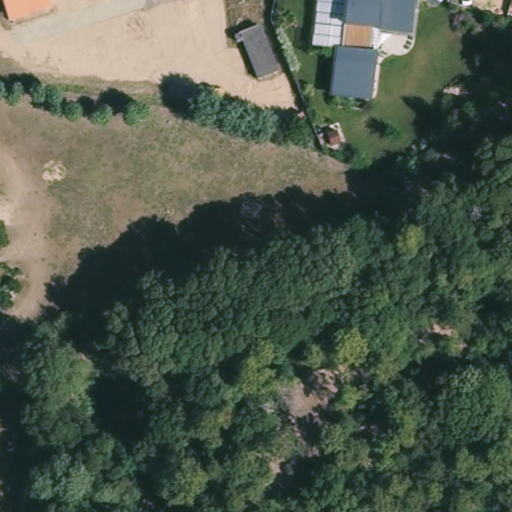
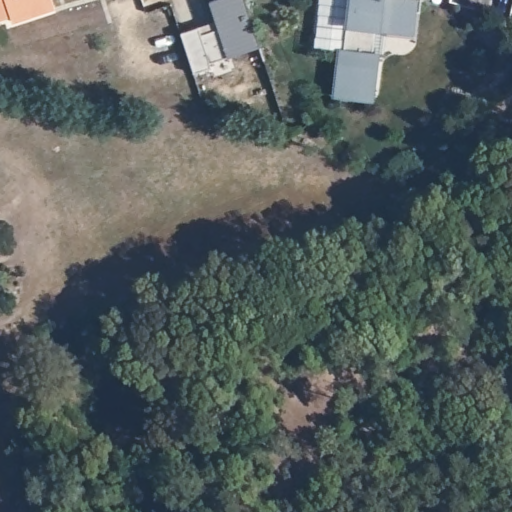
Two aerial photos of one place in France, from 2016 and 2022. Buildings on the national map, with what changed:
unchanged [(9,0),(56,0),(58,8),(37,16),(16,22),(14,15),(9,0)]
new [(180,32),(213,20),(208,1),(213,0),(244,0),(258,47),(208,61),(210,66),(191,72),(180,32)]
unchanged [(419,12),(414,12),(412,34),(379,30),(378,51),(373,99),(332,95),(337,47),(311,45),(316,0),(421,0),(419,12)]
demolished [(283,74),(264,81),(249,42),(267,34),(283,74)]
demolished [(241,37),(246,35),(249,42),(243,45),(241,37)]
demolished [(291,116),(299,110),(306,120),(297,125),(291,116)]

